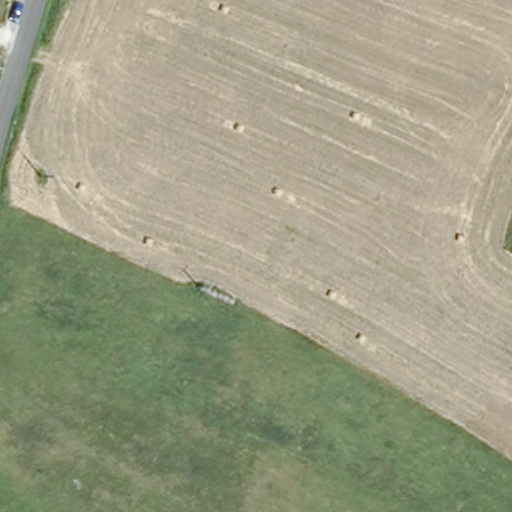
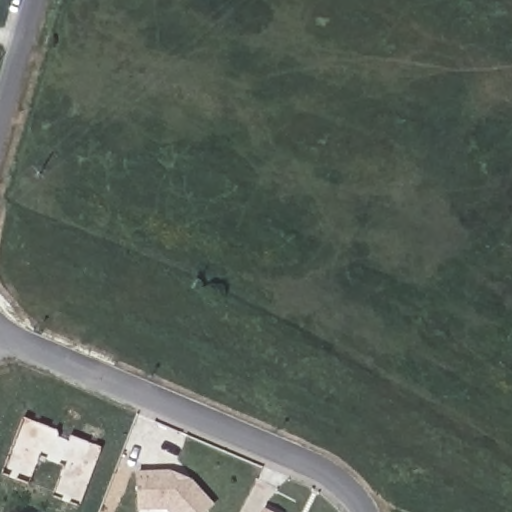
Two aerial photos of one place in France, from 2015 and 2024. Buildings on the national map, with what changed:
new [(148,512),(139,512),(138,474),(175,472),(192,480),(215,506),(209,512),(167,512),(166,511),(148,512)]

